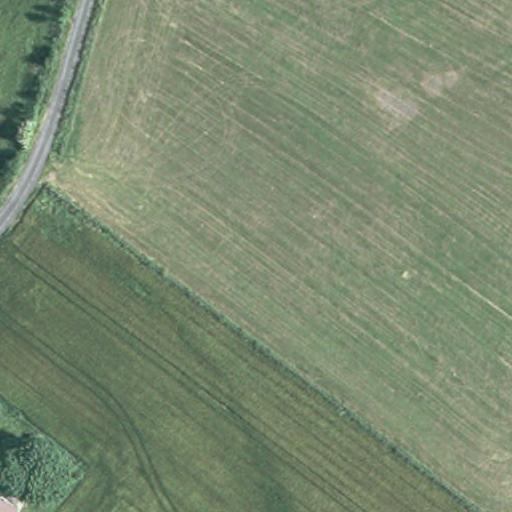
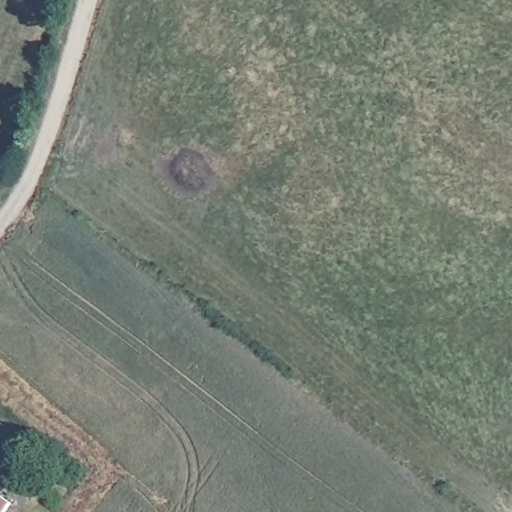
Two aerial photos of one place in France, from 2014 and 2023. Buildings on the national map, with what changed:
unchanged [(8,512),(0,512),(0,494),(14,504),(8,512)]

